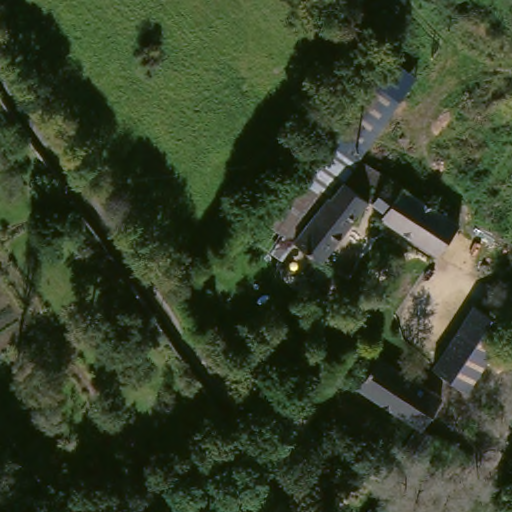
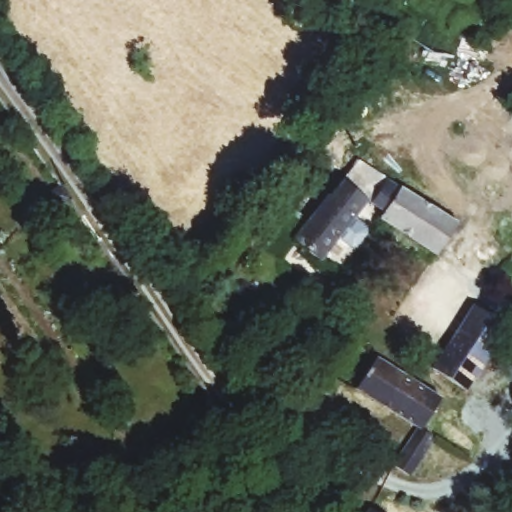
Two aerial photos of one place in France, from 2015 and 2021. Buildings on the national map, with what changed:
unchanged [(398,101),(362,158),(330,137),(367,84),(398,101)]
unchanged [(466,232),(440,261),(383,222),(387,217),(370,207),(332,260),(325,270),(312,261),(294,248),(358,160),(466,232)]
unchanged [(506,328),(462,395),(451,387),(448,385),(430,372),(477,306),(506,328)]
unchanged [(391,336),(401,344),(388,364),(441,396),(419,430),(353,389),(374,355),(391,336)]
unchanged [(408,479),(395,470),(419,430),(431,439),(408,479)]

